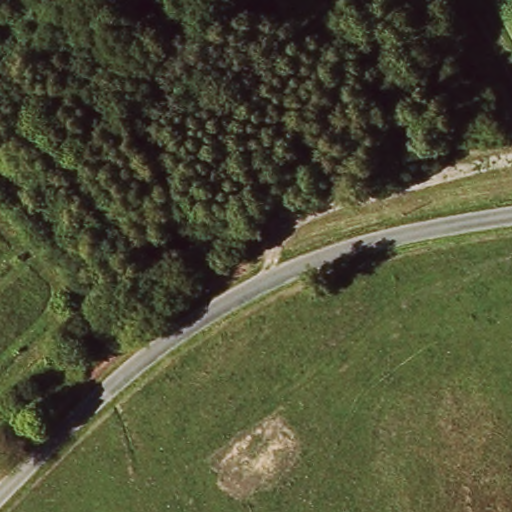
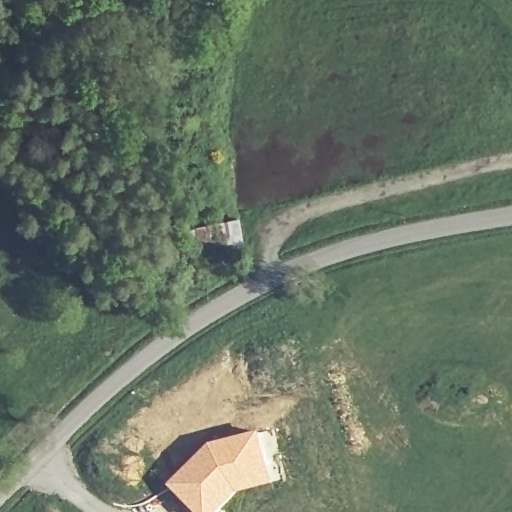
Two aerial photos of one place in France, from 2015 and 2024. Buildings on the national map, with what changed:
unchanged [(191,217),(238,213),(240,239),(193,242),(191,217)]
new [(213,442),(240,435),(268,430),(280,482),(241,494),(222,512),(198,512),(170,484),(213,442)]

